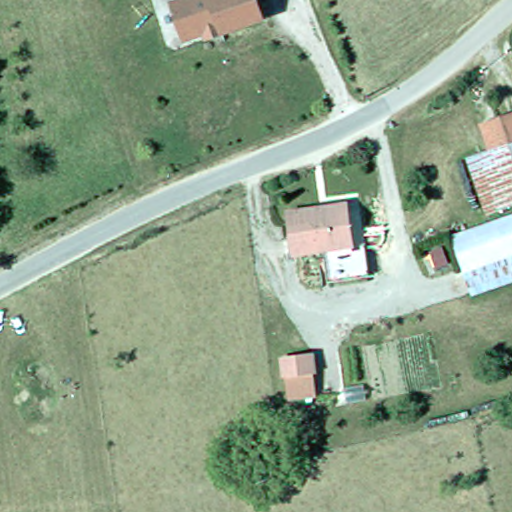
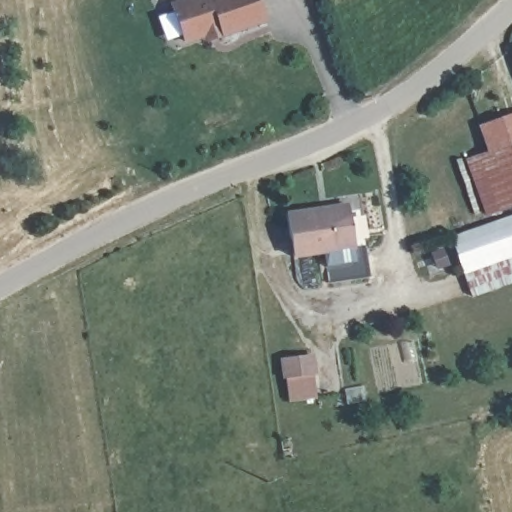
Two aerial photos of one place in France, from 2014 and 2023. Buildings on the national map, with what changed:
unchanged [(207,29),(185,37),(173,0),(257,0),(263,17),(223,30),(208,35),(207,29)]
unchanged [(502,208),(484,152),(476,126),(512,113),(512,205),(502,208)]
unchanged [(484,214),(464,159),(484,152),(502,208),(484,214)]
unchanged [(345,196),(345,201),(351,238),(363,236),(367,267),(327,273),(322,242),(290,246),(283,204),(317,199),(345,196)]
unchanged [(504,217),(512,215),(512,244),(504,217)]
unchanged [(446,237),(504,217),(512,244),(512,255),(459,273),(446,237)]
unchanged [(283,385),(280,344),(307,342),(310,383),(283,385)]

